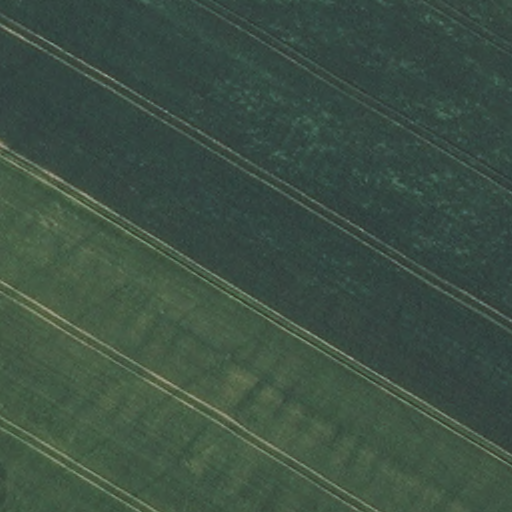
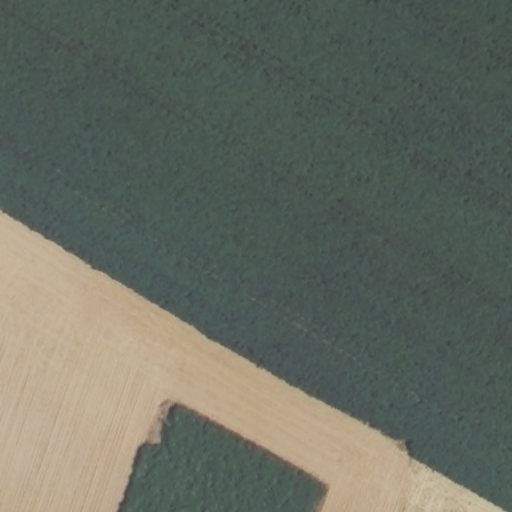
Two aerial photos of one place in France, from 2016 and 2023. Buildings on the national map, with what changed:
[]

